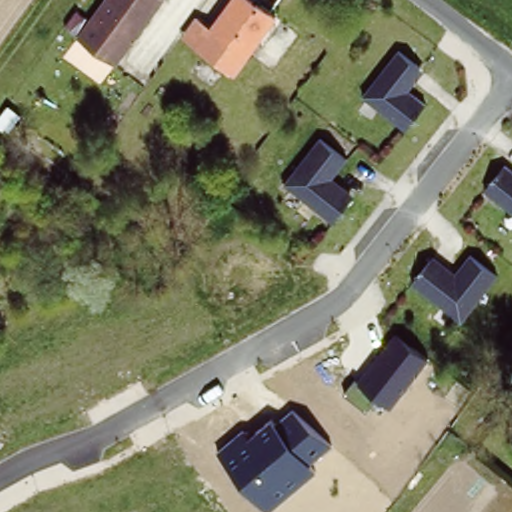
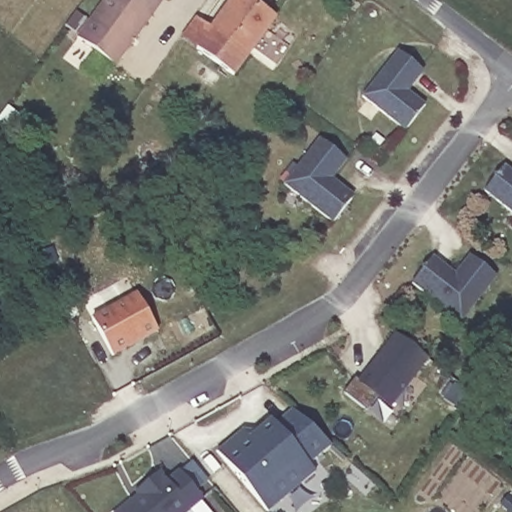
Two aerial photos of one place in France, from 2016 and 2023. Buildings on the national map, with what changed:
unchanged [(105,0),(155,0),(157,1),(111,66),(76,42),(105,0)]
unchanged [(227,0),(261,0),(282,15),(252,56),(209,25),(227,0)]
unchanged [(247,52),(235,72),(180,37),(194,15),(209,25),(247,52)]
unchanged [(419,76),(404,95),(420,110),(402,131),(362,99),(396,57),(419,76)]
unchanged [(342,164),(329,185),(349,203),(329,225),(284,185),(317,141),(342,164)]
unchanged [(512,179),(512,214),(481,192),(501,169),(512,179)]
unchanged [(429,260),(451,278),(466,260),(491,280),(460,321),(412,285),(429,260)]
new [(136,291),(156,328),(111,353),(90,316),(136,291)]
unchanged [(344,392),(356,378),(357,380),(395,334),(428,358),(391,408),(378,400),(367,411),(344,392)]
unchanged [(267,512),(219,451),(247,428),(254,435),(273,420),(276,423),(292,409),(332,445),(309,464),(316,471),(268,512),(267,512)]
new [(132,489),(156,470),(164,479),(177,468),(200,496),(181,512),(114,512),(136,493),(132,489)]

